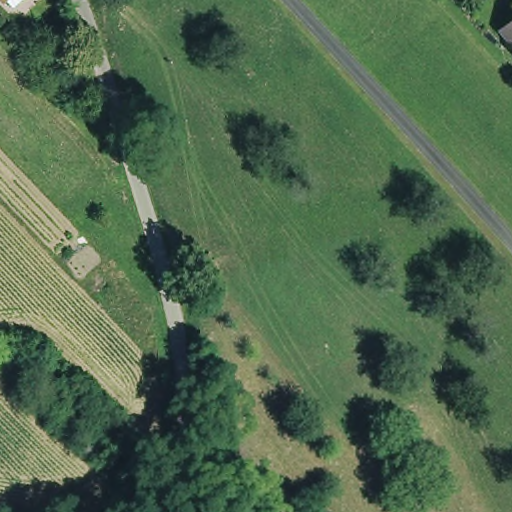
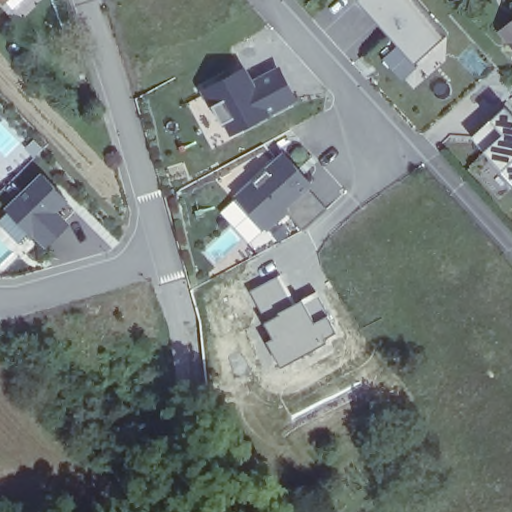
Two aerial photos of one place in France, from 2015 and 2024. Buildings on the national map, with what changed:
unchanged [(12,5),(8,9),(0,0),(17,0),(12,5)]
new [(358,0),(418,0),(449,35),(415,65),(415,64),(415,63),(360,0),(358,1),(357,0),(358,0)]
unchanged [(512,46),(504,37),(512,30),(512,46)]
new [(297,101),(230,137),(212,104),(208,106),(200,89),(245,66),(252,78),(280,65),(297,101)]
new [(512,114),(512,183),(470,137),(505,106),(512,114)]
new [(313,185),(308,189),(326,209),(302,230),(288,214),(267,231),(234,195),(285,150),(313,185)]
new [(48,246),(45,243),(34,232),(32,234),(31,233),(8,210),(44,175),(57,188),(67,198),(68,199),(55,211),(66,222),(70,225),(48,246)]
new [(279,273),(295,300),(315,290),(338,332),(315,349),(280,368),(263,339),(270,335),(247,290),(279,273)]

